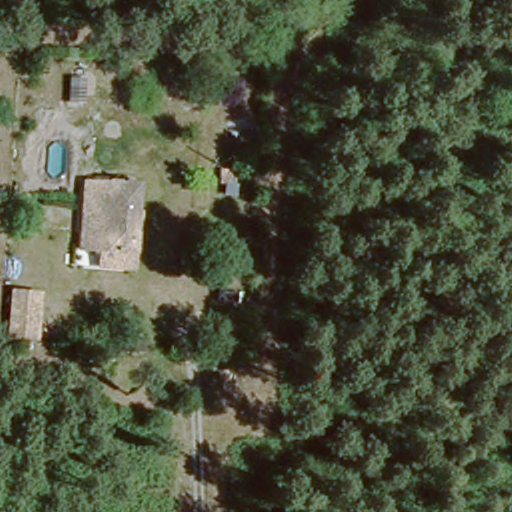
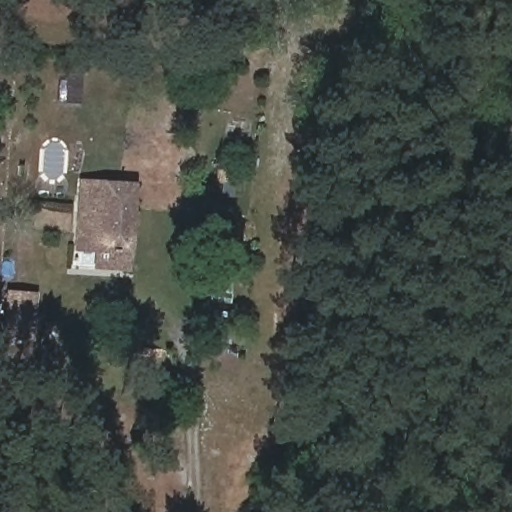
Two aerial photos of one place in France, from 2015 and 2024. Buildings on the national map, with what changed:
unchanged [(132,249),(76,249),(78,181),(132,180),(132,249)]
unchanged [(228,203),(213,202),(214,189),(229,191),(228,203)]
unchanged [(40,323),(38,351),(38,368),(10,366),(13,322),(21,322),(40,323)]

